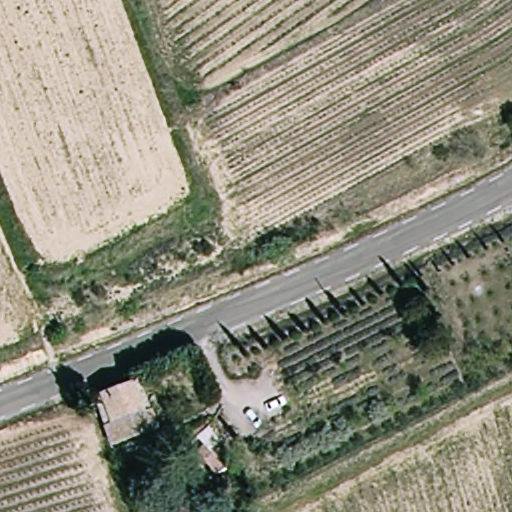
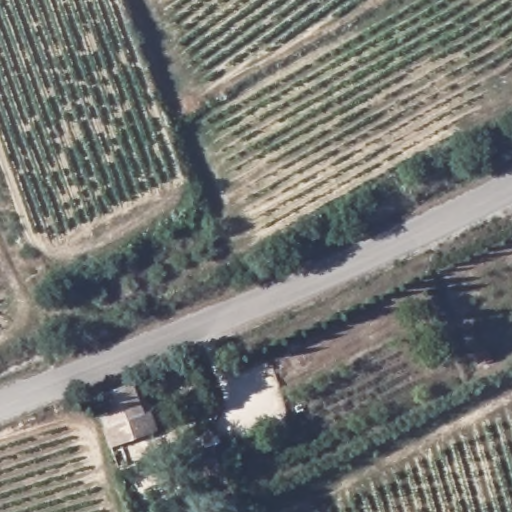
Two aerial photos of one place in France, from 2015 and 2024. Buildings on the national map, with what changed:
unchanged [(143,380),(154,412),(108,428),(98,398),(143,380)]
unchanged [(154,412),(161,434),(117,449),(108,428),(154,412)]
unchanged [(199,449),(186,439),(202,418),(218,428),(199,449)]

